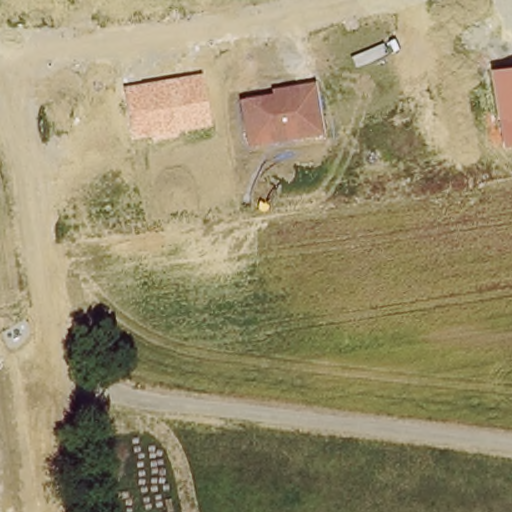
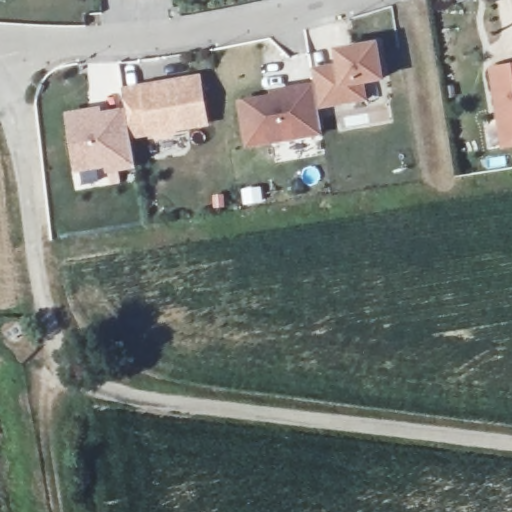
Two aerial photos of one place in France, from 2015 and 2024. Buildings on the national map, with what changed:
new [(378,45),(383,79),(363,83),(344,85),(342,72),(339,52),(378,45)]
unchanged [(512,149),(505,150),(490,68),(512,65),(512,149)]
new [(320,107),(315,83),(313,72),(333,68),(334,73),(342,72),(344,85),(363,83),(365,99),(320,107)]
unchanged [(202,75),(210,126),(176,132),(176,137),(158,141),(154,138),(133,141),(125,87),(202,75)]
unchanged [(271,96),(270,91),(315,83),(320,107),(324,137),(247,149),(239,101),(271,96)]
new [(128,108),(133,141),(135,171),(107,176),(107,170),(77,175),(66,115),(103,108),(105,111),(128,108)]

